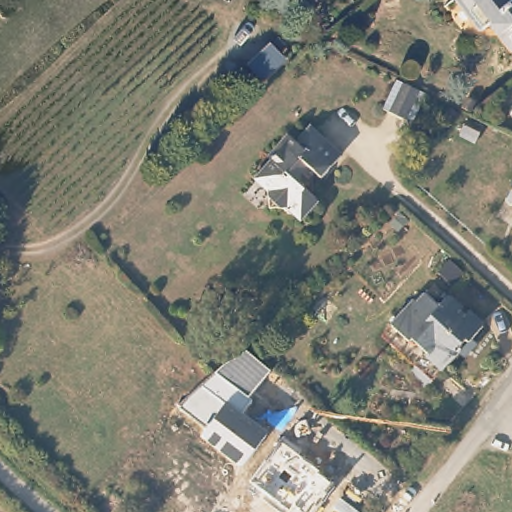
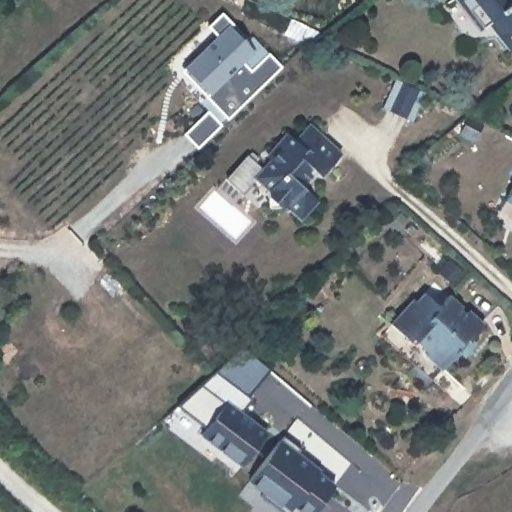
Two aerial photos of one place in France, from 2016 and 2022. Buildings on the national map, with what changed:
unchanged [(491,24),(482,31),(457,0),(512,0),(512,50),(491,24)]
new [(227,118),(182,70),(218,35),(210,25),(223,12),(258,50),(245,65),(253,72),(270,56),(281,67),(227,118)]
unchanged [(427,93),(414,121),(385,109),(397,79),(427,93)]
unchanged [(485,130),(480,140),(465,132),(471,123),(485,130)]
unchanged [(337,155),(322,174),(313,172),(304,181),(310,187),(311,195),(313,199),(298,216),(288,206),(278,206),(269,198),(270,190),(256,177),(271,160),(268,158),(288,135),(296,141),(308,128),(337,155)]
unchanged [(502,199),(512,184),(512,205),(502,199)]
unchanged [(511,227),(512,225),(512,228),(511,227)]
unchanged [(472,350),(467,345),(437,379),(420,365),(426,357),(392,328),(415,302),(419,305),(434,287),(447,299),(457,289),(471,302),(469,305),(474,308),(477,305),(492,318),(481,330),(486,335),(472,350)]
unchanged [(242,350),(270,371),(249,397),(252,400),(242,413),(267,432),(243,466),(202,435),(207,427),(180,406),(242,350)]
unchanged [(266,493),(250,483),(281,442),(335,485),(314,512),(283,512),(262,497),(266,493)]

